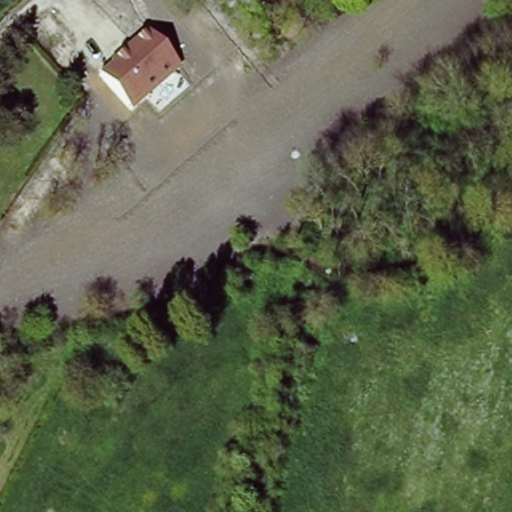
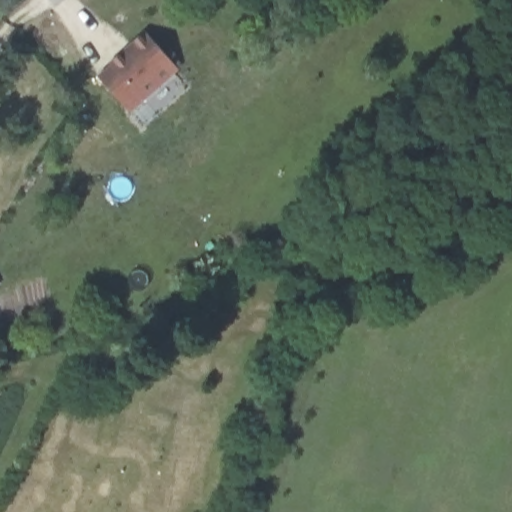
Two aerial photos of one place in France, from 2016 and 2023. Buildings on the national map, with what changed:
unchanged [(180,68),(133,111),(99,76),(147,33),(180,68)]

